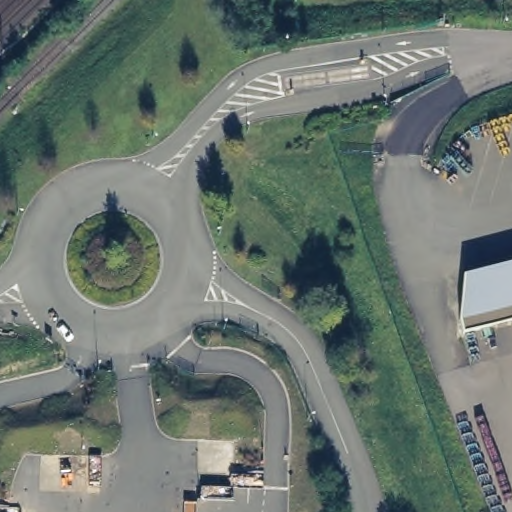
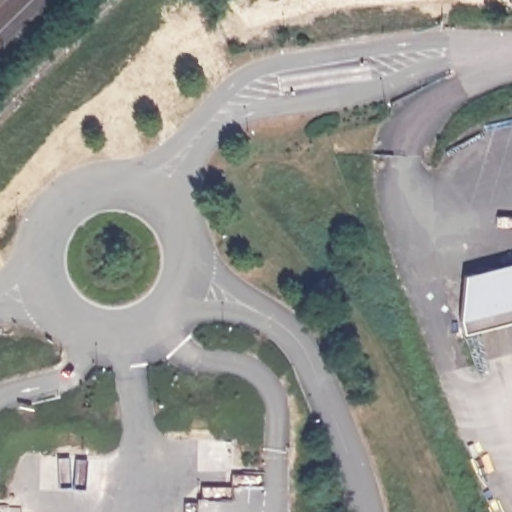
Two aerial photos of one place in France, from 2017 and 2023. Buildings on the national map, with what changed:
unchanged [(459,322),(464,277),(512,264),(512,322),(463,336),(459,322)]

